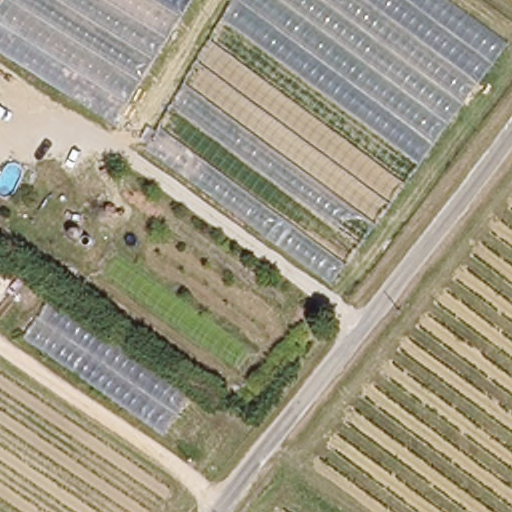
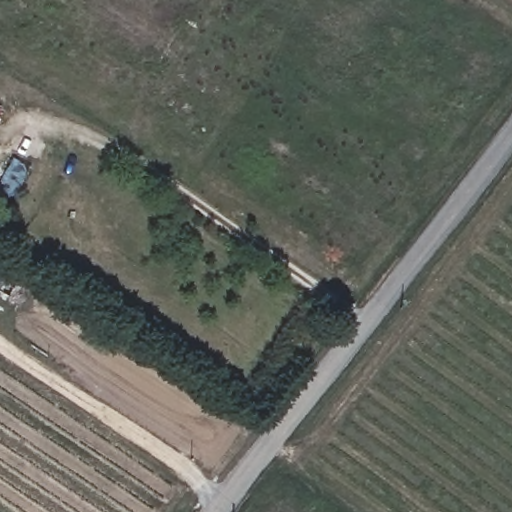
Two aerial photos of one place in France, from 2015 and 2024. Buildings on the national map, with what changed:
demolished [(117,120),(0,47),(0,11),(7,0),(193,0),(117,120)]
demolished [(237,0),(449,0),(507,43),(333,281),(149,148),(237,0)]
demolished [(113,249),(248,347),(237,365),(101,267),(113,249)]
demolished [(29,336),(56,297),(192,394),(167,433),(29,336)]

